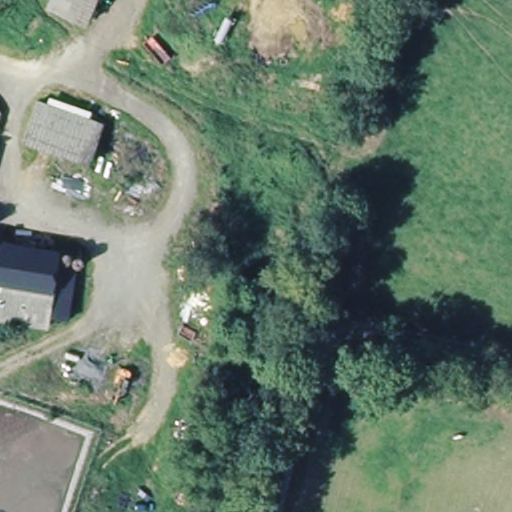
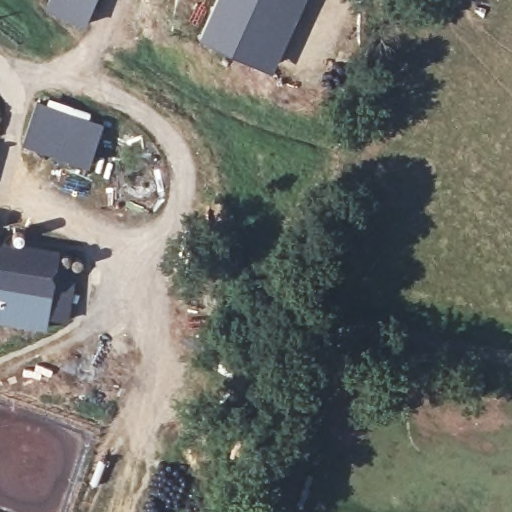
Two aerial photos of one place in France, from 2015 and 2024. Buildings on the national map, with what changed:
unchanged [(53,0),(100,0),(89,27),(49,11),(53,0)]
new [(217,0),(290,0),(260,64),(200,36),(217,0)]
unchanged [(23,143),(39,101),(107,123),(92,164),(23,143)]
unchanged [(58,265),(54,290),(0,281),(0,240),(61,250),(58,265)]
unchanged [(80,269),(76,293),(74,292),(68,322),(49,319),(54,290),(58,265),(80,269)]
unchanged [(49,319),(47,326),(0,319),(0,281),(54,290),(49,319)]

